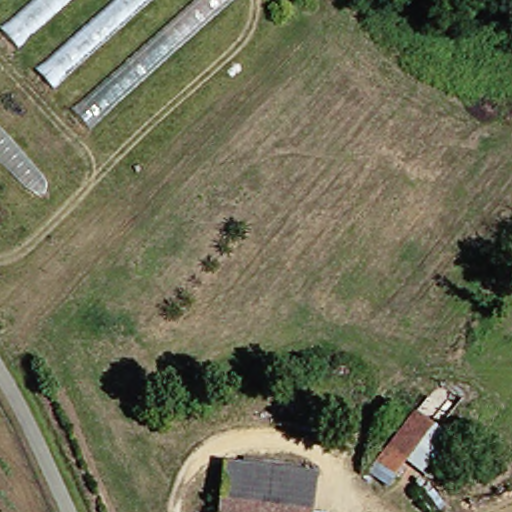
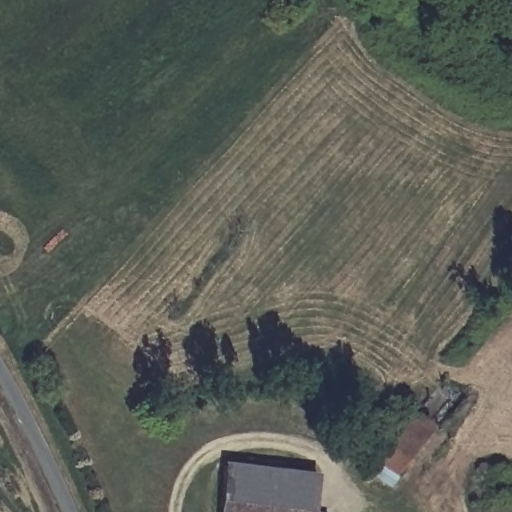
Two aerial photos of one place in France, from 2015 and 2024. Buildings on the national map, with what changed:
demolished [(20,50),(0,25),(0,24),(28,0),(75,0),(20,50)]
demolished [(54,87),(35,70),(113,0),(151,0),(54,87)]
demolished [(93,129),(75,109),(195,0),(236,0),(93,129)]
unchanged [(409,415),(433,380),(462,403),(437,434),(451,446),(424,481),(412,470),(407,475),(399,467),(382,488),(365,473),(409,415)]
unchanged [(220,512),(226,468),(317,480),(312,512),(220,512)]

